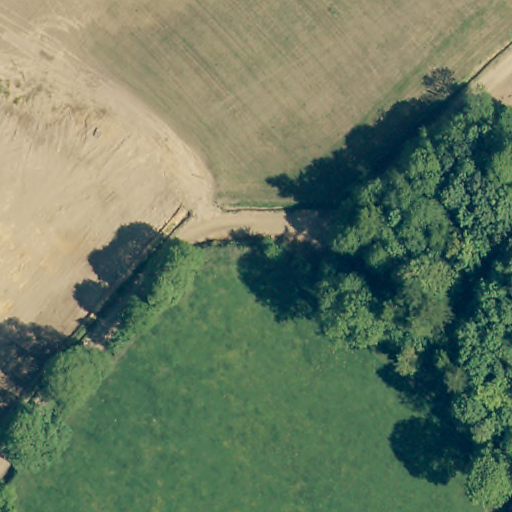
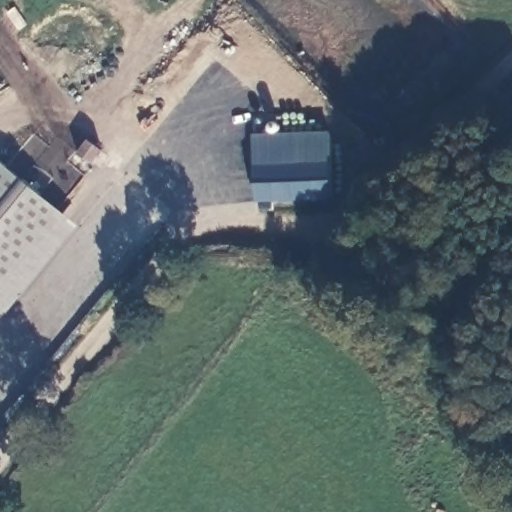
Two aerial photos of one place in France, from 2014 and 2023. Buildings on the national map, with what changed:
new [(332,197),(256,201),(252,136),(330,131),(332,197)]
new [(79,224),(0,320),(0,160),(79,224)]
unchanged [(512,512),(504,504),(512,496),(512,512)]

